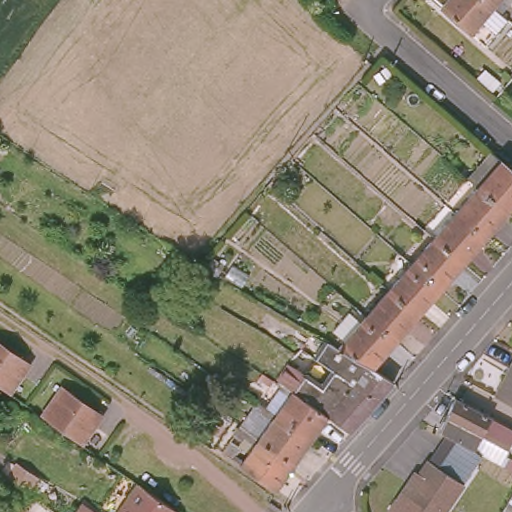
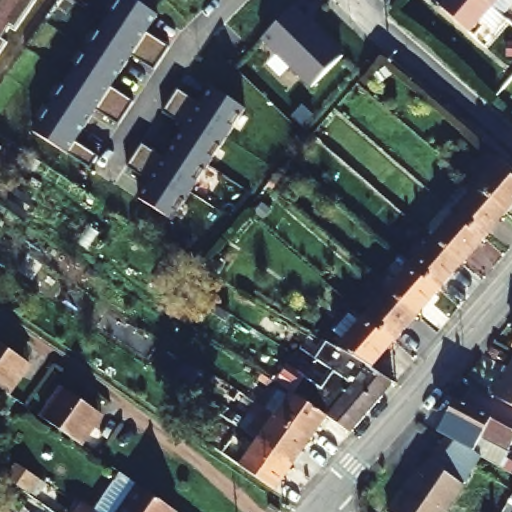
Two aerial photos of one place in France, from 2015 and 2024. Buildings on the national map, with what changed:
new [(9,25),(1,38),(5,41),(0,50),(0,0),(35,0),(15,29),(9,25)]
new [(146,34),(168,48),(154,69),(133,54),(110,88),(132,101),(119,121),(98,108),(75,143),(96,155),(89,168),(33,131),(114,0),(136,0),(158,14),(146,34)]
unchanged [(499,34),(484,20),(472,33),(444,9),(452,0),(489,0),(496,5),(511,19),(499,34)]
unchanged [(489,0),(500,0),(496,5),(489,0)]
new [(294,3),(339,55),(309,85),(262,34),(294,3)]
new [(199,104),(211,85),(246,110),(175,220),(138,197),(149,181),(129,166),(142,146),(163,159),(183,128),(163,114),(179,89),(199,104)]
unchanged [(469,179),(494,151),(512,167),(512,206),(507,212),(481,190),(479,189),(469,179)]
unchanged [(485,237),(458,213),(479,189),(481,190),(507,212),(485,237)]
unchanged [(485,237),(462,262),(435,239),(458,213),(485,237)]
unchanged [(462,262),(439,288),(413,264),(435,239),(462,262)]
unchanged [(416,314),(389,290),(413,264),(439,288),(416,314)]
unchanged [(416,314),(394,339),(367,315),(389,290),(416,314)]
unchanged [(383,394),(368,412),(351,434),(283,386),(287,380),(296,386),(302,378),(303,379),(318,389),(336,368),(319,359),(323,354),(329,342),(339,347),(367,315),(394,339),(370,366),(394,384),(383,394)]
unchanged [(510,342),(505,339),(512,325),(512,343),(510,342)]
unchanged [(487,387),(510,342),(512,343),(512,400),(487,387)]
unchanged [(13,396),(0,387),(0,346),(32,369),(13,396)]
unchanged [(100,414),(81,442),(47,418),(40,413),(60,385),(100,414)]
unchanged [(293,396),(329,419),(311,443),(278,416),(293,396)]
unchanged [(512,429),(512,473),(492,462),(475,453),(476,451),(442,433),(459,400),(512,429)]
unchanged [(259,441),(278,416),(311,443),(294,466),(259,441)]
new [(426,465),(442,433),(476,451),(475,453),(481,456),(461,486),(426,465)]
unchanged [(275,490),(241,466),(259,441),(294,466),(275,490)]
unchanged [(461,486),(445,512),(390,512),(394,504),(401,508),(426,465),(461,486)]
unchanged [(143,488),(178,512),(125,512),(143,488)]
unchanged [(83,507),(90,512),(79,512),(83,507)]

